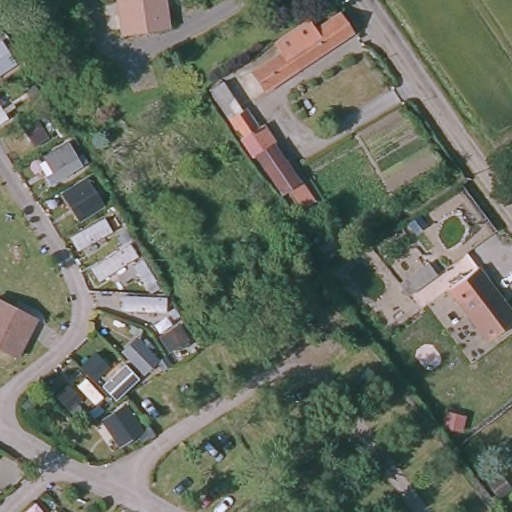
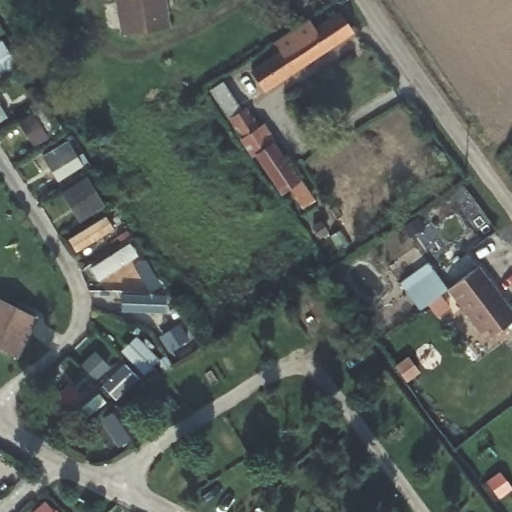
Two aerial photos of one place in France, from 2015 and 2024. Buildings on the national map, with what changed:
unchanged [(121,35),(116,0),(161,0),(166,27),(121,35)]
unchanged [(233,80),(241,74),(271,54),(266,45),(299,22),(307,31),(331,15),(343,34),(256,94),(247,100),(233,80)]
unchanged [(238,109),(241,107),(254,127),(253,129),(259,139),(244,149),(238,141),(241,140),(233,127),(230,127),(206,90),(219,81),(238,109)]
unchanged [(292,183),(273,195),(249,155),(268,142),(292,183)]
unchanged [(439,275),(419,290),(410,277),(431,262),(439,275)]
unchanged [(512,315),(512,319),(484,339),(446,288),(475,266),(512,315)]
unchanged [(0,301),(33,311),(19,353),(0,347),(0,301)]
unchanged [(119,443),(103,419),(125,406),(140,430),(119,443)]
unchanged [(148,436),(141,442),(136,435),(143,429),(148,436)]
unchanged [(502,500),(489,483),(502,475),(512,488),(512,492),(502,500)]

